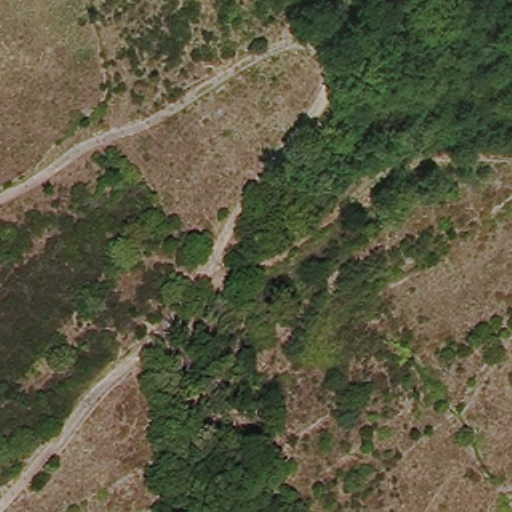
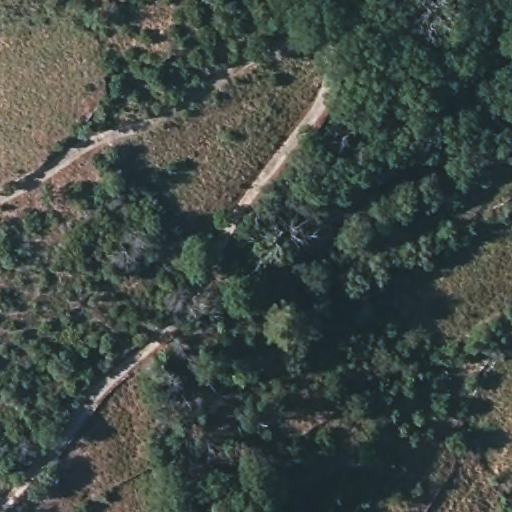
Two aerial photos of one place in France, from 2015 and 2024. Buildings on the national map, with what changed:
[]

